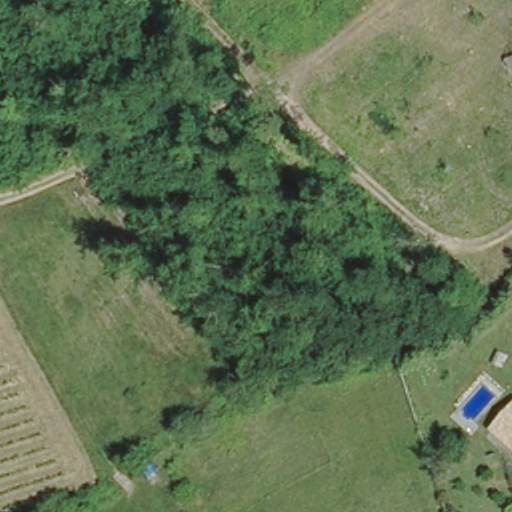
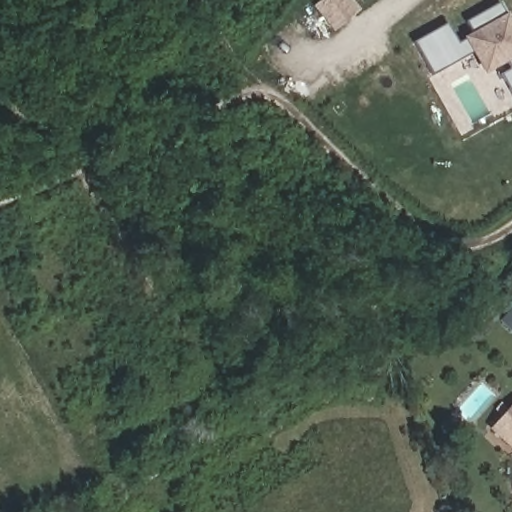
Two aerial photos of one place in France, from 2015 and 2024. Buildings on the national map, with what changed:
new [(504,15),(508,12),(512,21),(512,96),(499,73),(509,68),(506,62),(484,75),(472,52),(432,75),(414,41),(447,23),(457,43),(466,39),(464,36),(472,31),(466,20),(499,2),(504,15)]
unchanged [(512,414),(512,453),(493,435),(512,414)]

